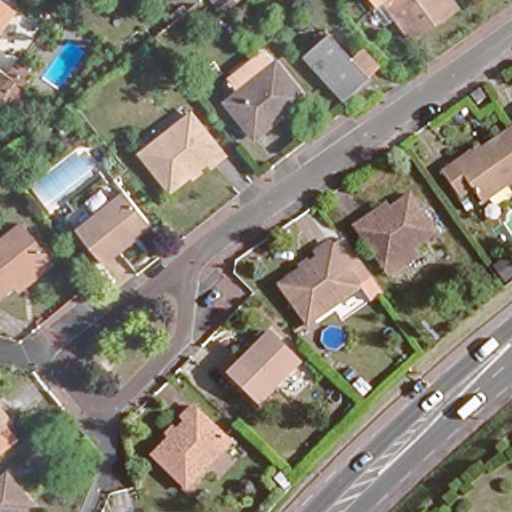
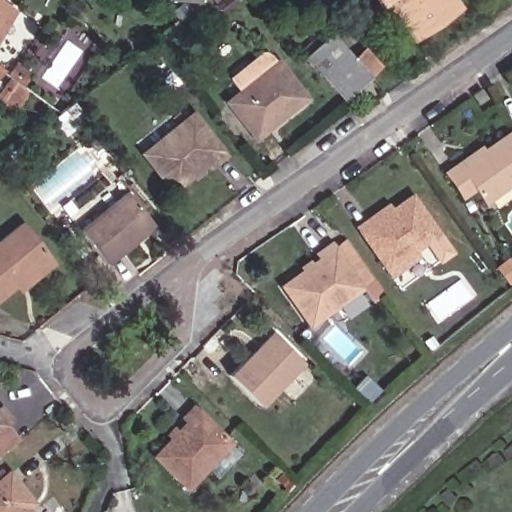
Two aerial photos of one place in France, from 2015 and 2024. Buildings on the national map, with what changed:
unchanged [(0,24),(0,0),(10,0),(15,3),(0,24)]
unchanged [(385,22),(370,0),(462,0),(409,41),(395,17),(385,22)]
unchanged [(297,49),(321,25),(353,58),(363,45),(382,58),(370,75),(344,98),(297,49)]
unchanged [(225,105),(237,94),(226,81),(259,54),(270,59),(279,68),(301,98),(250,137),(225,105)]
unchanged [(466,114),(455,98),(468,88),(480,104),(466,114)]
unchanged [(209,161),(204,155),(170,183),(140,147),(187,108),(221,152),(209,161)]
unchanged [(512,122),(512,124),(511,122),(512,122)]
unchanged [(442,171),(477,146),(481,151),(512,129),(512,183),(480,204),(471,191),(459,199),(442,171)]
unchanged [(104,259),(77,225),(120,189),(147,225),(104,259)]
unchanged [(386,267),(355,224),(381,205),(387,213),(408,197),(433,232),(386,267)]
unchanged [(0,233),(16,220),(42,254),(46,260),(12,287),(8,281),(0,287),(0,233)]
unchanged [(306,251),(317,242),(321,248),(334,237),(336,239),(346,254),(350,260),(361,276),(301,322),(273,287),(312,258),(306,251)]
unchanged [(474,264),(489,254),(499,269),(483,279),(474,264)]
unchanged [(232,370),(272,327),(305,360),(265,402),(232,370)]
unchanged [(10,412),(0,421),(0,401),(1,400),(10,412)]
unchanged [(184,481),(150,452),(181,417),(175,413),(187,400),(226,438),(184,481)]
unchanged [(0,478),(8,471),(31,500),(23,506),(28,512),(0,512),(0,478)]

